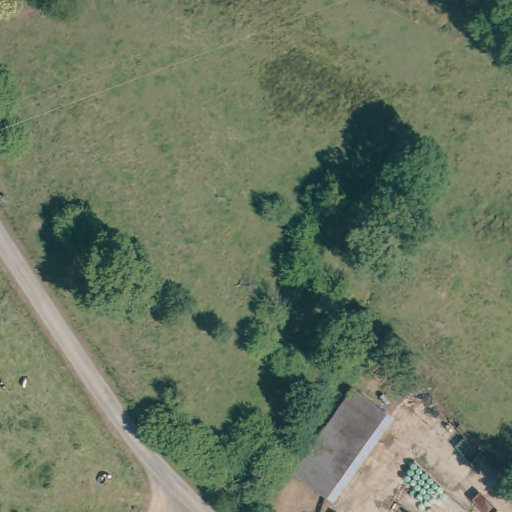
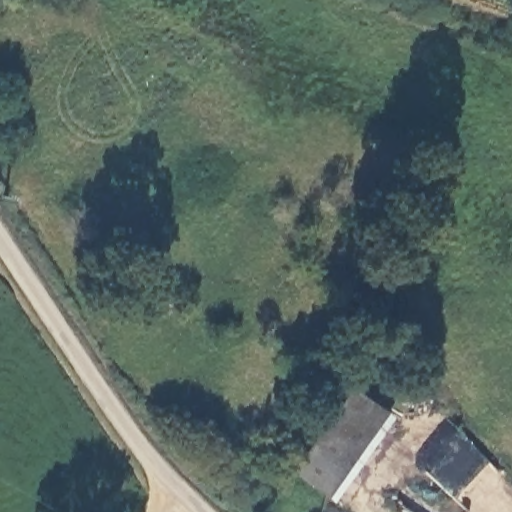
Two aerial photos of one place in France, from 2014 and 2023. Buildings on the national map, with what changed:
unchanged [(330,501),(297,478),(356,394),(388,418),(330,501)]
unchanged [(213,500),(189,477),(198,465),(226,483),(213,500)]

